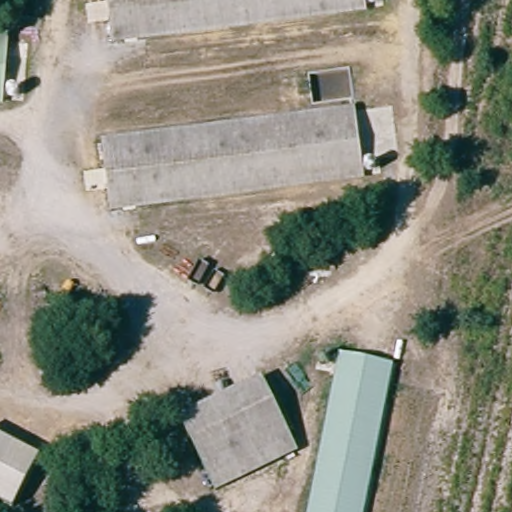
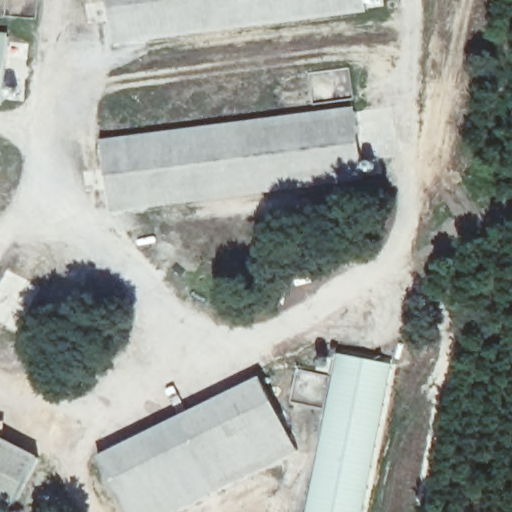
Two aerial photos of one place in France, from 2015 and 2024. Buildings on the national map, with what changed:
unchanged [(364,9),(110,36),(107,0),(364,0),(364,9)]
unchanged [(4,105),(0,104),(0,31),(9,32),(4,105)]
unchanged [(105,143),(359,116),(366,181),(111,207),(105,143)]
unchanged [(393,365),(362,512),(309,512),(341,355),(393,365)]
unchanged [(298,451),(217,490),(181,416),(262,377),(298,451)]
new [(173,512),(128,512),(99,458),(181,416),(217,490),(173,512)]
new [(14,508),(0,502),(0,436),(39,456),(14,508)]

